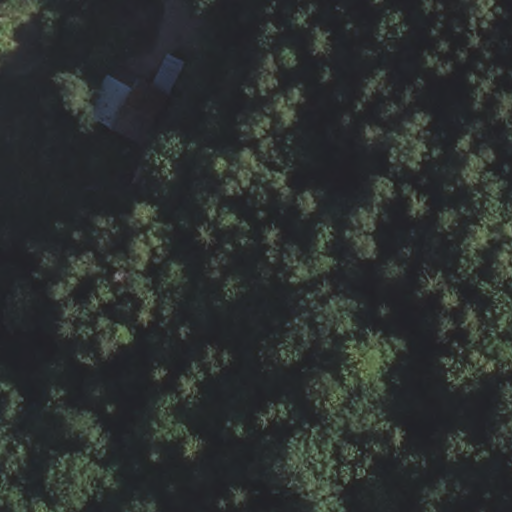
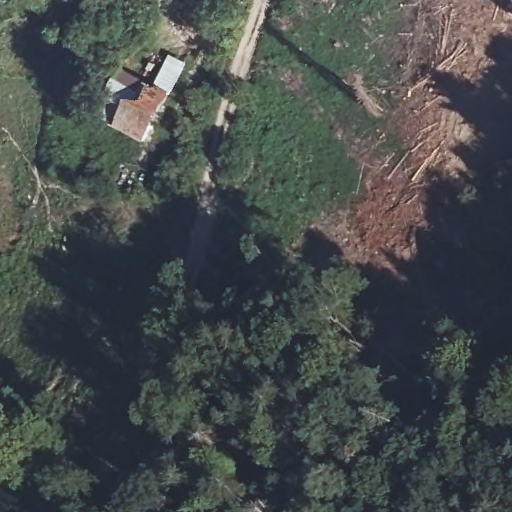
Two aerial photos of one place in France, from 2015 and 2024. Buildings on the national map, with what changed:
unchanged [(150,90),(166,106),(143,142),(122,132),(150,90)]
unchanged [(200,387),(214,426),(191,435),(176,396),(200,387)]

